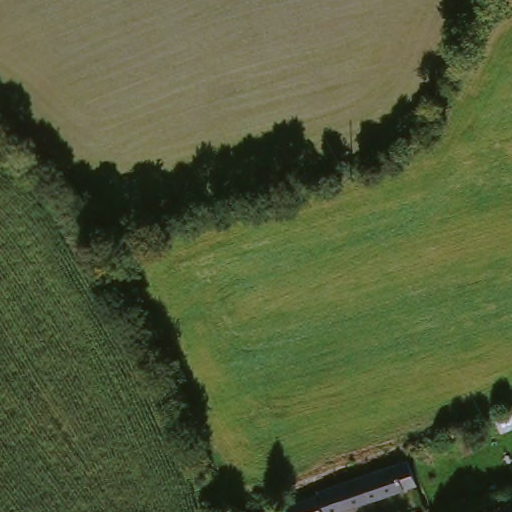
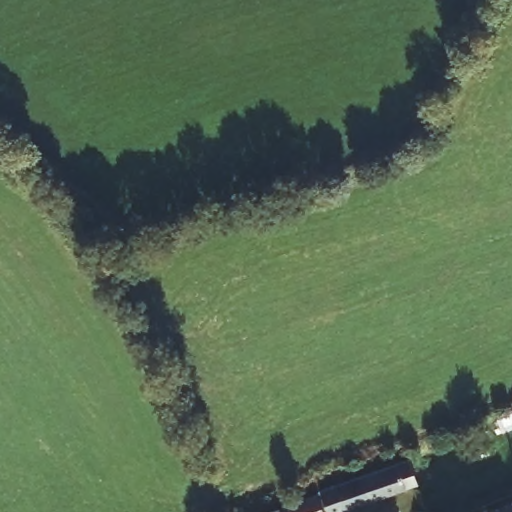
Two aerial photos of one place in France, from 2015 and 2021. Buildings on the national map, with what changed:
unchanged [(284,512),(399,470),(408,492),(355,512),(284,512)]

